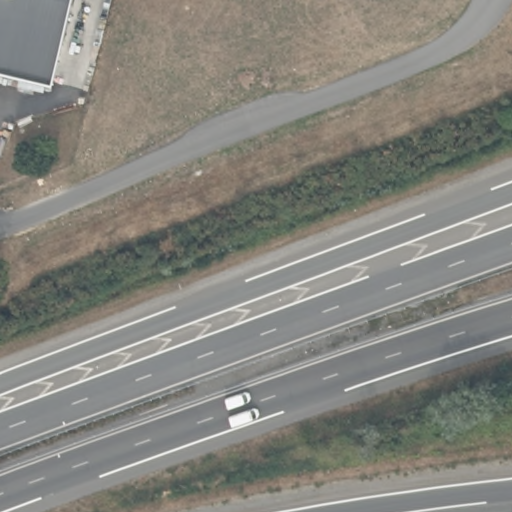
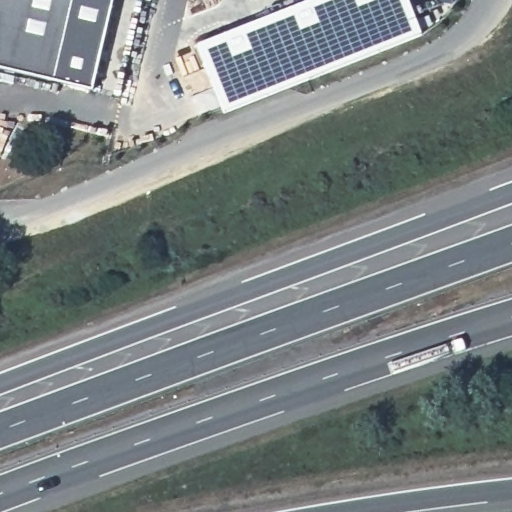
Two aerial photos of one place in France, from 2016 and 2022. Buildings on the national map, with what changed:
unchanged [(55,79),(0,66),(0,0),(73,0),(55,79)]
new [(92,90),(55,79),(73,0),(114,0),(92,90)]
new [(309,0),(409,0),(422,35),(422,36),(226,114),(225,112),(197,45),(309,0)]

